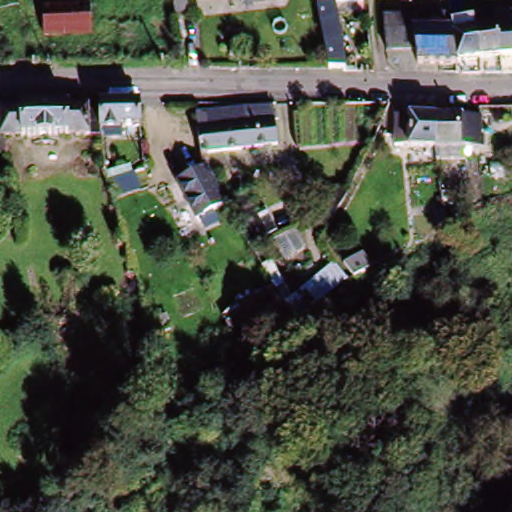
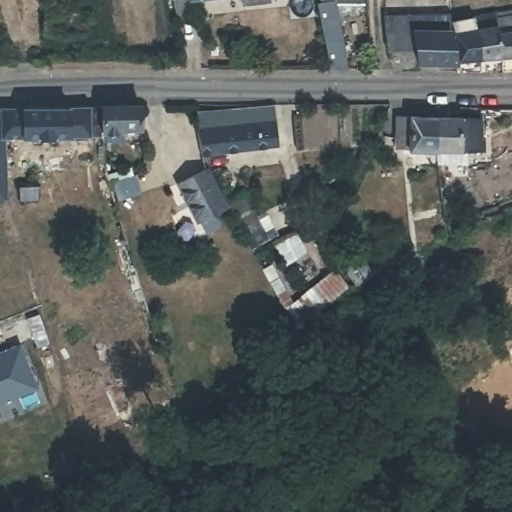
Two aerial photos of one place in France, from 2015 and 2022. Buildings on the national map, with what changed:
unchanged [(184,0),(202,0),(204,17),(187,22),(184,0)]
unchanged [(368,8),(348,12),(354,69),(332,65),(323,2),(323,0),(368,0),(368,8)]
unchanged [(91,7),(92,39),(50,41),(47,10),(91,7)]
unchanged [(465,62),(422,65),(422,51),(390,56),(389,41),(388,19),(387,17),(453,13),(455,21),(479,16),(507,12),(508,32),(512,32),(512,58),(483,61),(465,62)]
unchanged [(99,107),(134,107),(134,110),(135,131),(110,132),(110,136),(101,136),(87,136),(0,136),(0,107),(87,107),(99,107)]
unchanged [(272,147),(242,151),(238,112),(273,107),(272,147)]
unchanged [(238,112),(242,151),(197,152),(194,115),(238,112)]
unchanged [(427,157),(388,157),(388,119),(427,119),(427,157)]
unchanged [(485,166),(467,165),(426,165),(427,157),(427,119),(467,119),(485,119),(485,166)]
unchanged [(225,205),(242,193),(275,245),(251,257),(223,211),(189,228),(174,185),(208,169),(225,205)]
unchanged [(319,202),(336,180),(350,189),(335,212),(319,202)]
unchanged [(350,257),(370,245),(381,263),(360,275),(350,257)]
unchanged [(310,318),(305,313),(350,278),(358,289),(316,326),(310,318)]
unchanged [(245,319),(294,296),(303,323),(283,334),(276,323),(252,335),(245,319)]
new [(37,389),(0,404),(0,350),(17,343),(37,389)]

